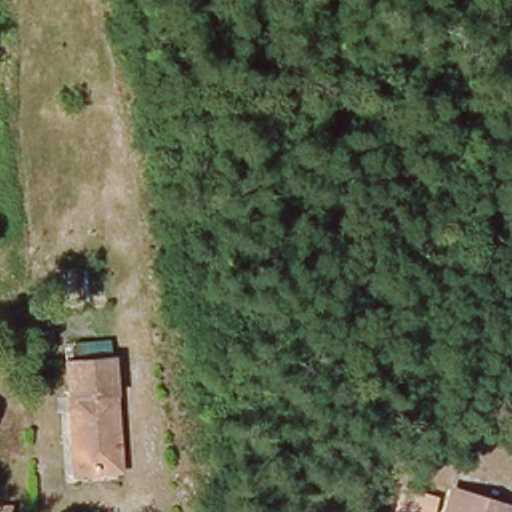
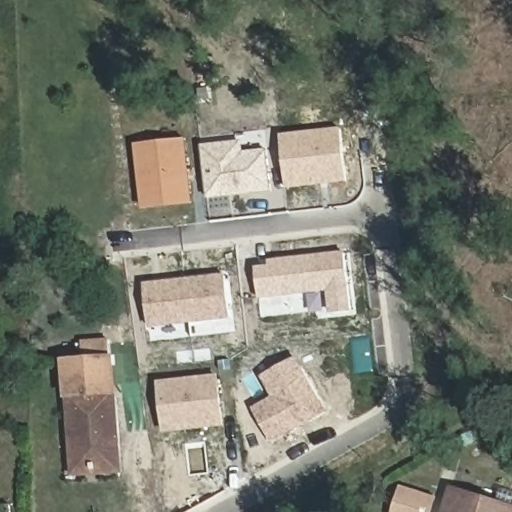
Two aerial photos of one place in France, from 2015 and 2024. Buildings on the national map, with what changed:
new [(341,127),(348,182),(287,190),(280,135),(341,127)]
new [(136,144),(185,138),(193,204),(144,210),(136,144)]
new [(265,148),(270,191),(206,199),(201,146),(241,141),(242,151),(265,148)]
new [(346,253),(352,312),(330,314),(327,291),(259,300),(255,263),(346,253)]
new [(150,328),(145,283),(225,273),(230,319),(150,328)]
unchanged [(80,477),(61,363),(107,355),(127,472),(80,477)]
new [(260,376),(294,356),(326,412),(271,442),(251,408),(272,396),(260,376)]
new [(219,375),(225,424),(164,431),(157,382),(219,375)]
unchanged [(440,502),(435,512),(396,512),(405,489),(440,502)]
unchanged [(511,512),(450,512),(461,490),(511,512)]

